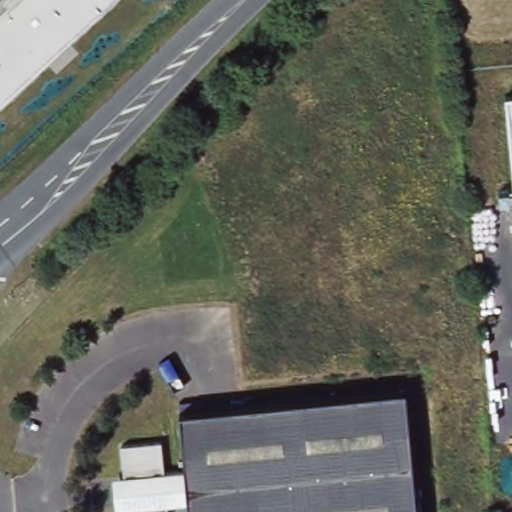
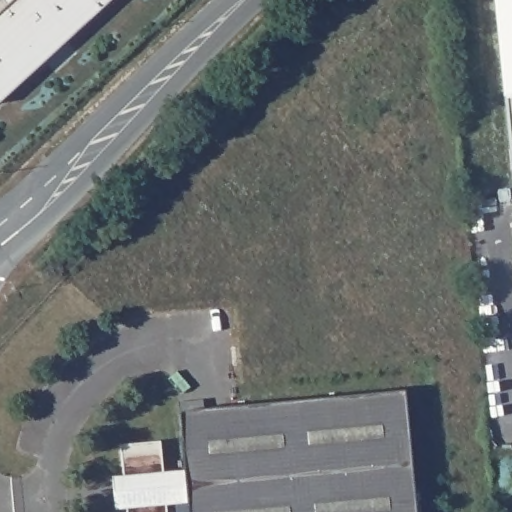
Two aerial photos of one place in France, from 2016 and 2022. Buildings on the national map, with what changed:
unchanged [(0,15),(16,0),(113,0),(0,102),(0,15)]
new [(512,0),(512,95),(504,96),(495,0),(512,0)]
unchanged [(504,96),(512,95),(512,172),(504,96)]
unchanged [(171,502),(166,503),(167,512),(127,512),(120,445),(161,441),(164,472),(184,471),(179,412),(405,391),(417,512),(172,512),(171,502)]

